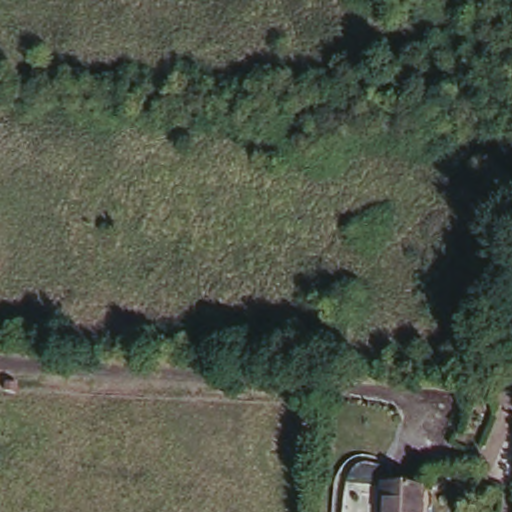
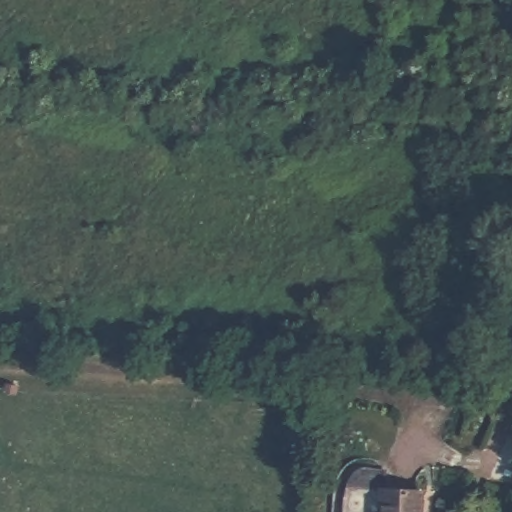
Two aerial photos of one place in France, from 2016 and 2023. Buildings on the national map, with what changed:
unchanged [(428,487),(427,512),(382,512),(383,484),(428,487)]

